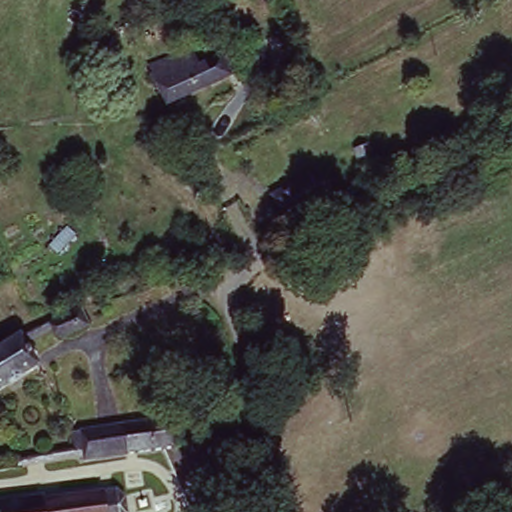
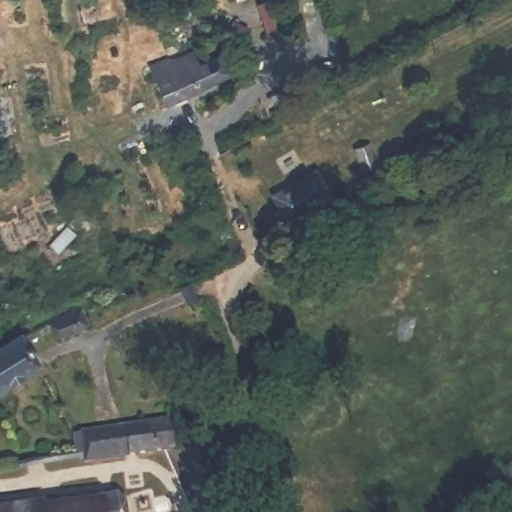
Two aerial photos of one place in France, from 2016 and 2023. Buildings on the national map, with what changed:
unchanged [(194,55),(199,65),(228,52),(239,72),(201,91),(168,107),(151,68),(189,49),(194,55)]
unchanged [(364,142),(376,176),(366,180),(355,146),(364,142)]
unchanged [(289,221),(274,196),(314,176),(328,198),(289,221)]
unchanged [(96,332),(69,343),(61,326),(90,315),(96,332)]
unchanged [(0,344),(11,338),(24,333),(38,363),(0,384),(0,344)]
unchanged [(131,456),(125,425),(171,421),(175,446),(175,450),(168,452),(131,456)]
unchanged [(88,461),(86,453),(80,456),(75,432),(125,425),(131,456),(88,461)]
unchanged [(118,512),(0,512),(0,510),(114,491),(118,512)]

